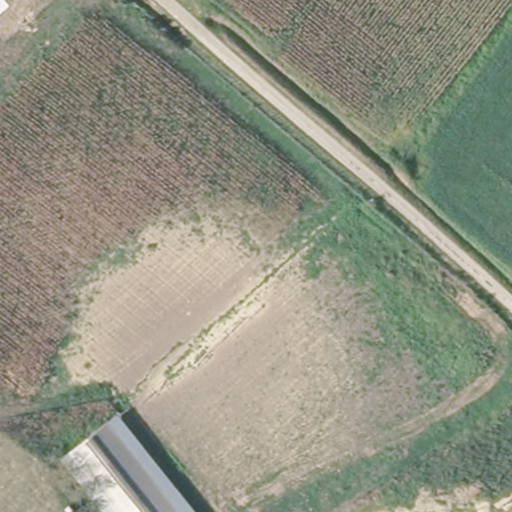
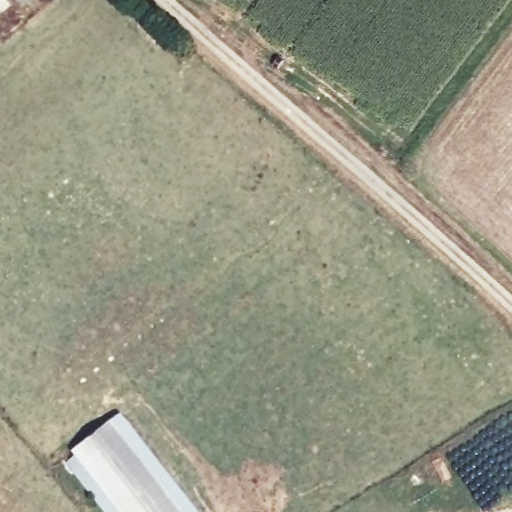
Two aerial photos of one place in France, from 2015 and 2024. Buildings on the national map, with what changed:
unchanged [(121,512),(71,450),(110,418),(185,512),(121,512)]

